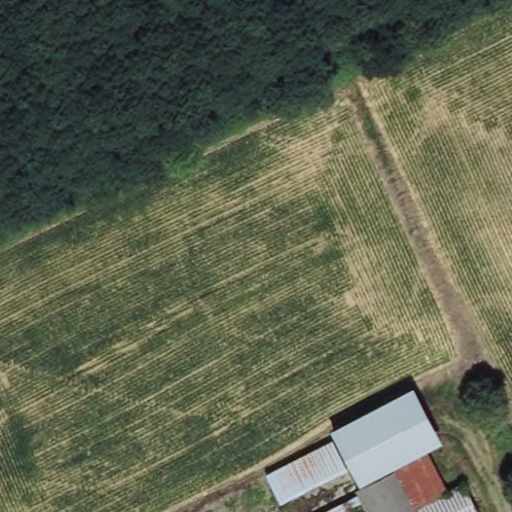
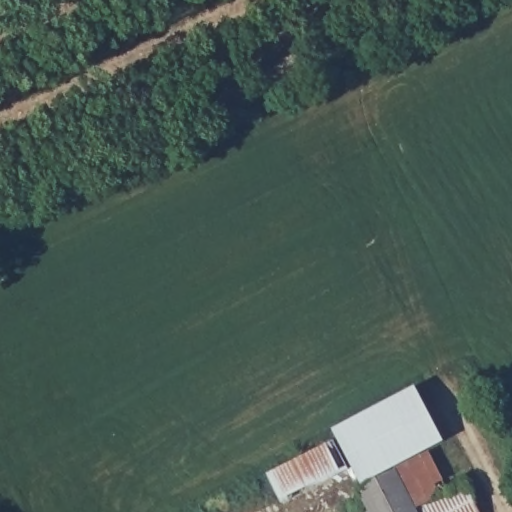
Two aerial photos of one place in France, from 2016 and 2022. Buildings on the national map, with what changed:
unchanged [(416,382),(449,445),(430,455),(400,470),(365,488),(354,468),(341,441),(335,427),(416,382)]
unchanged [(354,468),(303,492),(288,464),(341,441),(354,468)]
unchanged [(430,455),(431,458),(451,494),(422,510),(400,470),(430,455)]
unchanged [(479,512),(377,512),(366,490),(365,488),(400,470),(422,510),(451,494),(466,487),(479,512)]

